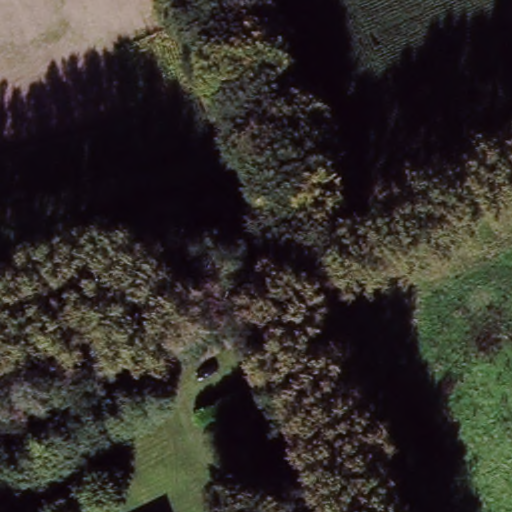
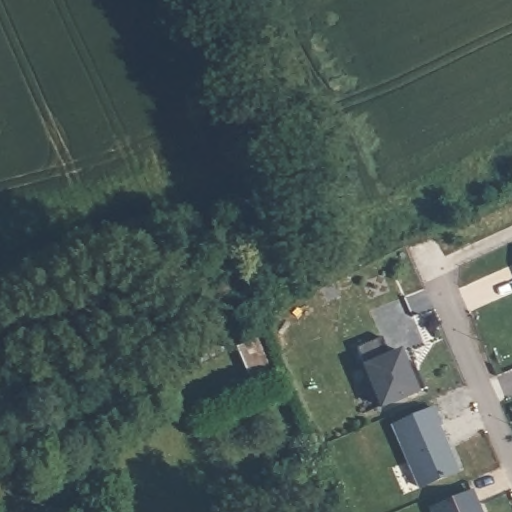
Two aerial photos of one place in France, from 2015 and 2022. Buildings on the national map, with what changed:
new [(390,353),(402,348),(420,391),(380,409),(362,364),(355,345),(381,334),(390,353)]
new [(442,425),(439,426),(461,472),(418,489),(390,424),(433,406),(442,425)]
new [(482,512),(432,512),(430,507),(472,488),(482,512)]

